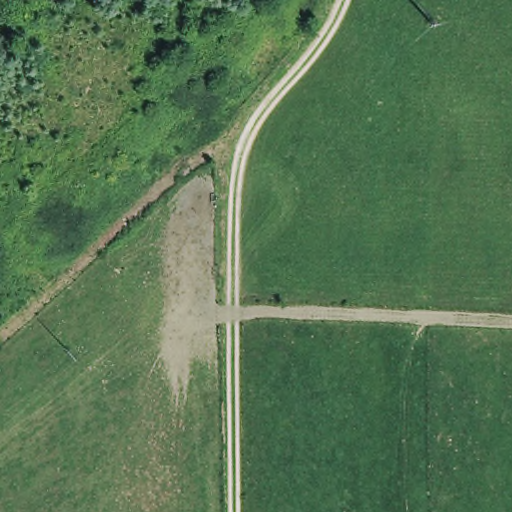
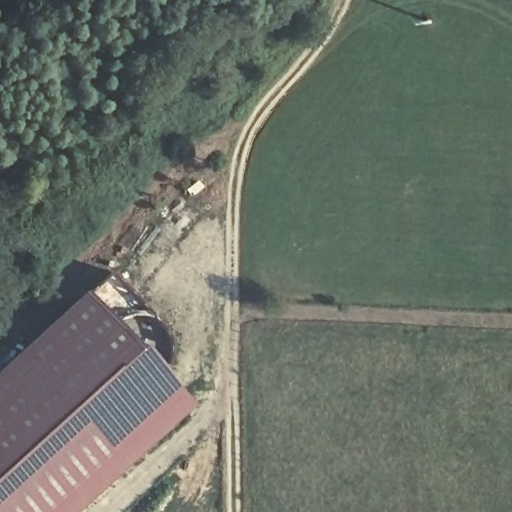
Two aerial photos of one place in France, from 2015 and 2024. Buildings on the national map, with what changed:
new [(109,269),(209,378),(190,399),(197,405),(80,512),(0,512),(0,369),(87,290),(109,269)]

